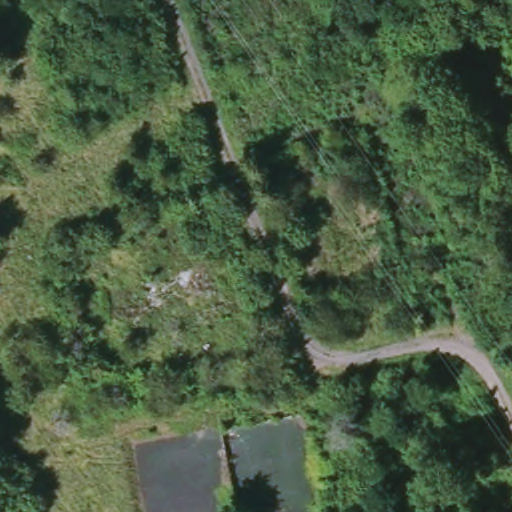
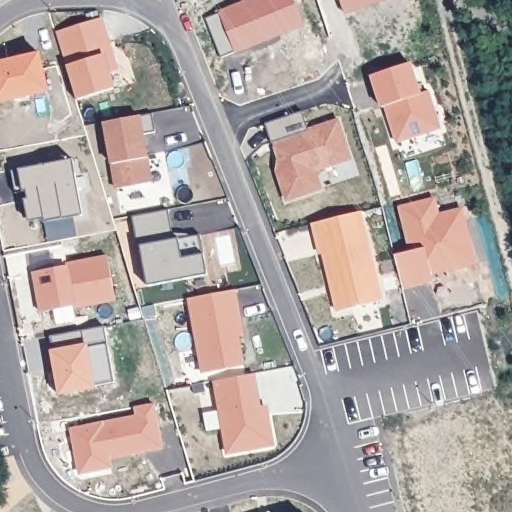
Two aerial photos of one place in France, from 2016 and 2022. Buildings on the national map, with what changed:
new [(241,0),(248,0),(250,2),(256,0),(290,0),(300,25),(276,34),(272,26),(260,31),(264,39),(218,58),(201,16),(241,0)]
new [(339,10),(336,0),(371,0),(339,10)]
new [(57,34),(102,20),(116,72),(107,73),(112,91),(76,100),(57,34)]
new [(40,51),(47,89),(0,99),(0,60),(40,51)]
new [(419,94),(428,91),(440,128),(397,142),(385,106),(382,107),(372,76),(410,64),(419,94)]
new [(292,197),(283,192),(276,172),(282,170),(272,141),(270,142),(263,123),(301,110),(307,129),(337,118),(350,157),(314,170),(320,188),(292,197)]
new [(102,122),(150,113),(153,131),(141,133),(150,181),(115,188),(102,122)]
new [(47,242),(43,220),(28,224),(22,195),(15,196),(10,168),(80,155),(83,171),(90,170),(95,193),(87,195),(92,222),(77,225),(78,238),(47,242)]
new [(423,245),(417,216),(460,206),(473,260),(430,271),(431,277),(399,285),(391,252),(423,245)]
new [(322,249),(318,250),(312,219),(358,208),(380,297),(335,307),(331,286),(326,264),(322,249)]
new [(173,239),(199,234),(207,274),(147,286),(131,216),(169,210),(173,239)]
new [(118,303),(90,306),(92,318),(72,322),(71,308),(44,314),(35,270),(108,255),(118,303)]
new [(189,299),(235,290),(243,335),(237,336),(244,365),(205,373),(189,299)]
new [(52,349),(50,336),(103,327),(115,382),(55,394),(51,372),(48,350),(52,349)]
new [(215,382),(254,374),(261,415),(267,414),(272,445),(227,452),(215,382)]
new [(71,430),(137,418),(136,408),(153,405),(161,451),(102,462),(102,470),(80,475),(71,430)]
new [(3,456),(12,473),(2,478),(0,474),(0,458),(3,456)]

